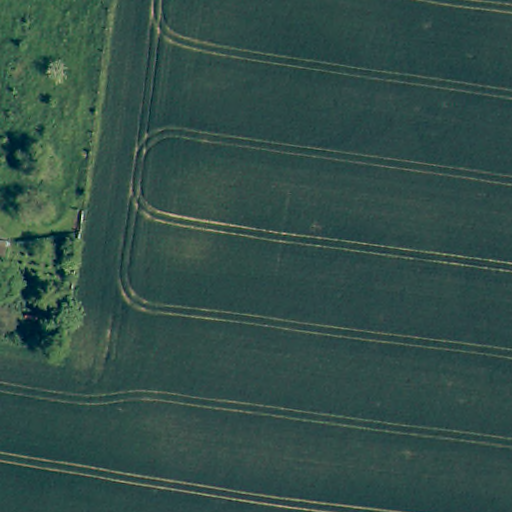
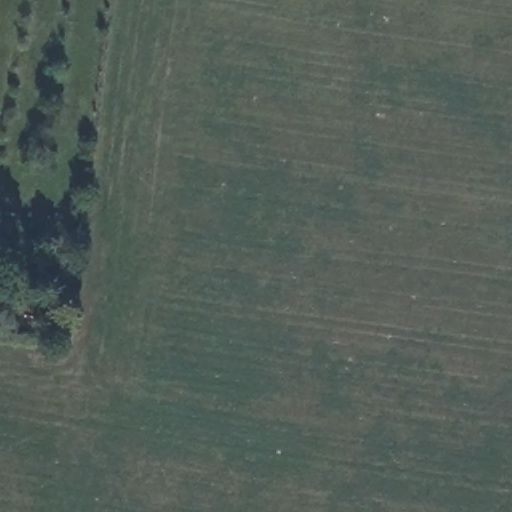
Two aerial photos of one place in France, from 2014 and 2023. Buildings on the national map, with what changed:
unchanged [(0,274),(0,238),(26,242),(23,258),(18,277),(0,274)]

